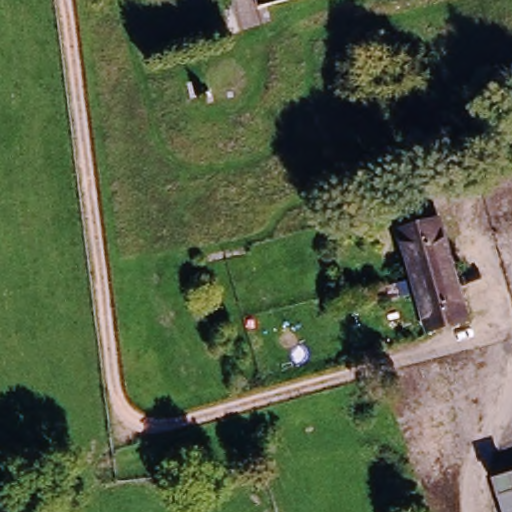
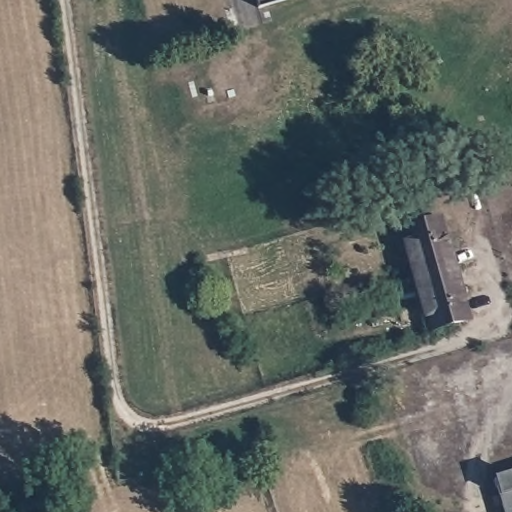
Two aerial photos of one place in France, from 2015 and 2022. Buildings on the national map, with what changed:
unchanged [(398,226),(437,216),(465,320),(424,332),(398,226)]
unchanged [(512,471),(512,512),(506,512),(496,476),(512,471)]

